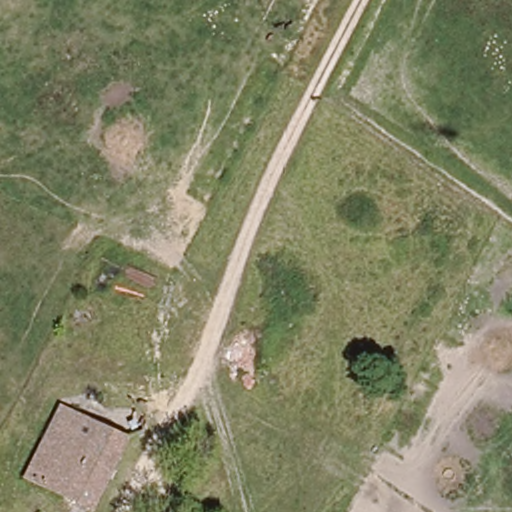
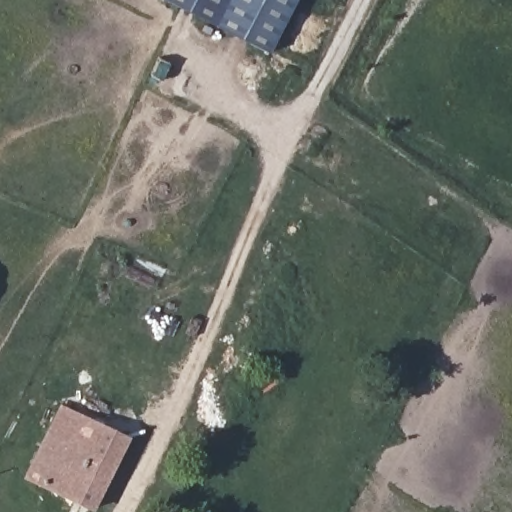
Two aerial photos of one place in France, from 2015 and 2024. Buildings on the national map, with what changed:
new [(165,0),(296,0),(270,53),(165,0)]
unchanged [(27,475),(59,405),(130,435),(91,511),(27,475)]

